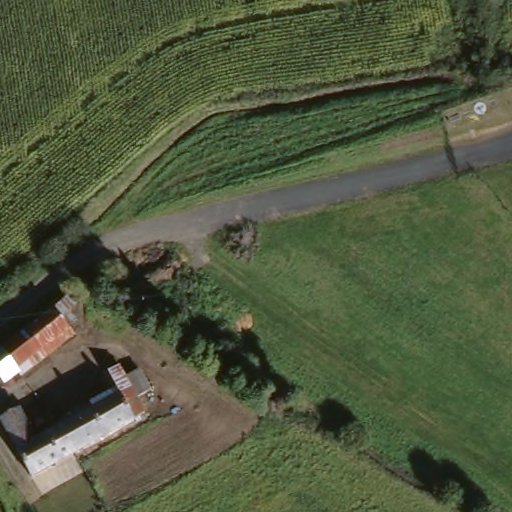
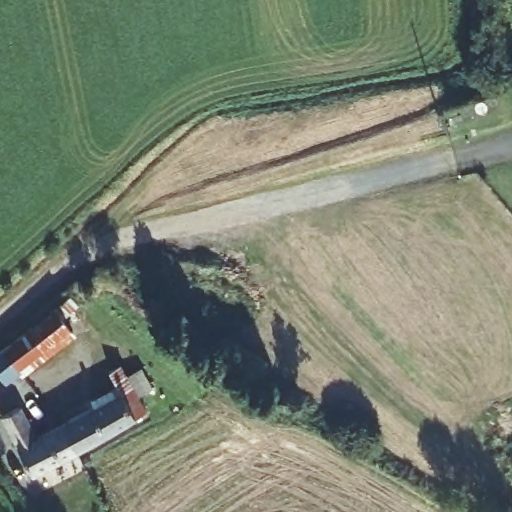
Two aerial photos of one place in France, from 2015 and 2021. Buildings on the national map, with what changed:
unchanged [(5,378),(0,373),(0,349),(12,339),(51,305),(72,332),(35,365),(22,376),(16,368),(5,378)]
unchanged [(102,404),(91,381),(111,371),(137,419),(67,456),(52,430),(102,404)]
unchanged [(22,479),(0,438),(0,418),(12,412),(28,443),(52,430),(67,456),(22,479)]

